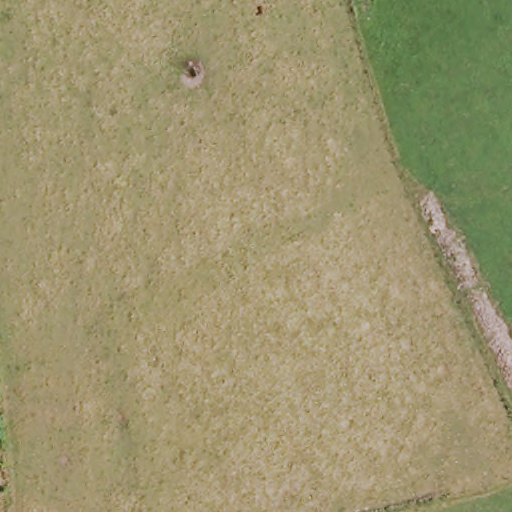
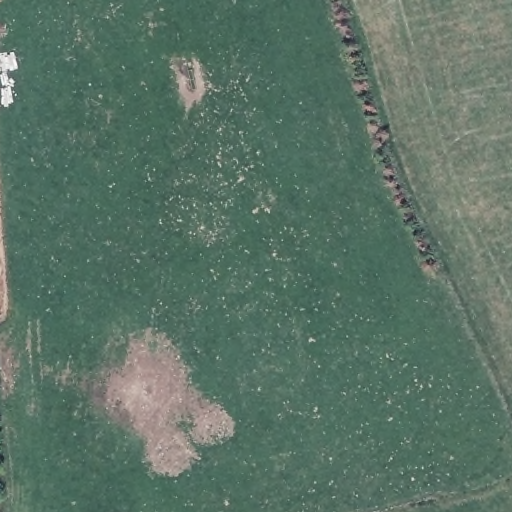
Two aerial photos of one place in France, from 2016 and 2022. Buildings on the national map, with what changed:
[]

